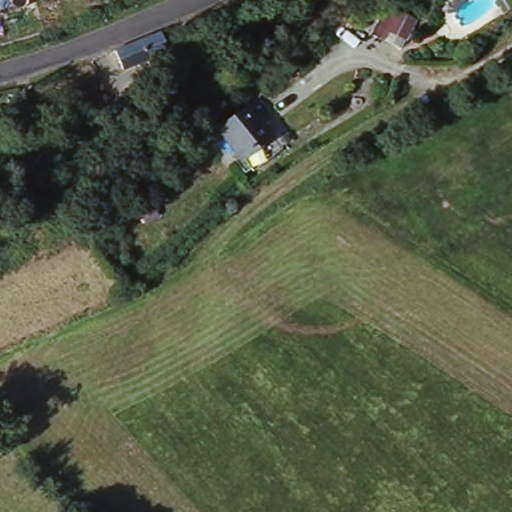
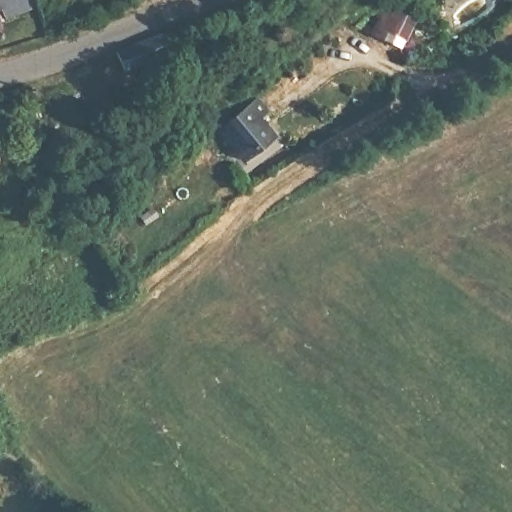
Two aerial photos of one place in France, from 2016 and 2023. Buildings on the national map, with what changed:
unchanged [(390,9),(400,14),(402,9),(420,17),(417,22),(410,34),(406,42),(390,33),(380,27),(390,9)]
unchanged [(127,48),(161,36),(166,52),(120,70),(113,53),(127,48)]
unchanged [(211,137),(256,95),(270,111),(261,120),(276,135),(241,169),(211,137)]

